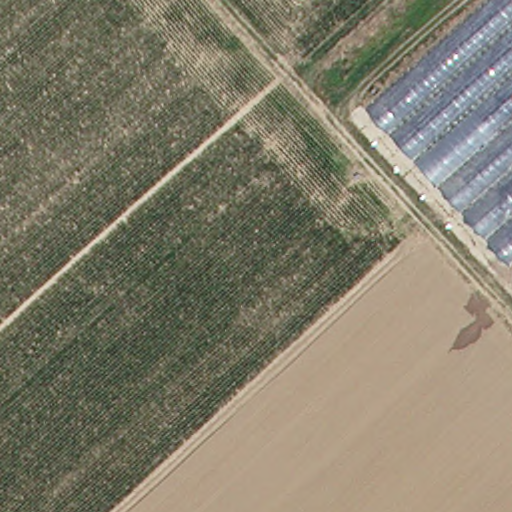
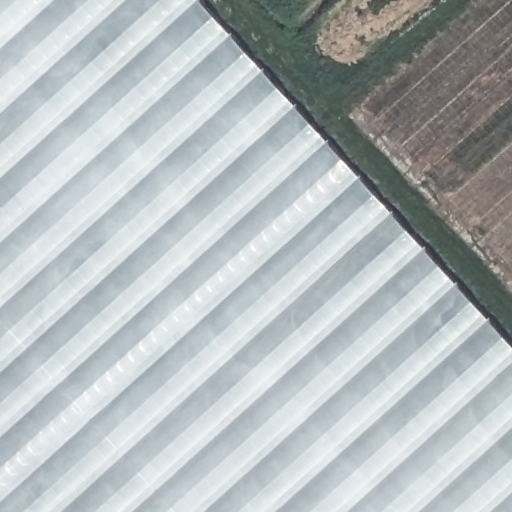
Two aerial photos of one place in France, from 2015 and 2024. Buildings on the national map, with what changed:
new [(512,512),(0,512),(0,0),(199,0),(512,346),(512,512)]
demolished [(354,107),(476,0),(512,0),(512,244),(494,259),(354,107)]
demolished [(512,265),(512,276),(506,270),(512,265)]

